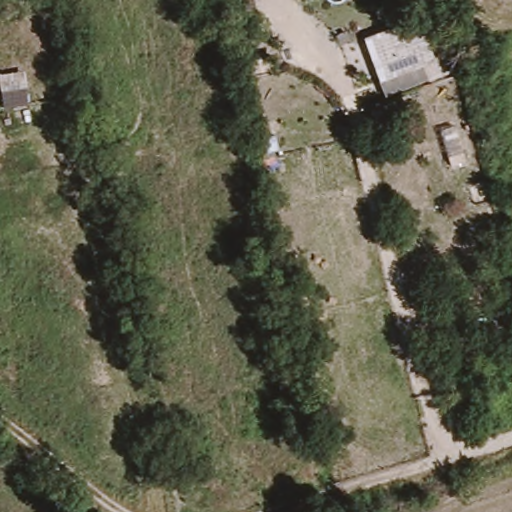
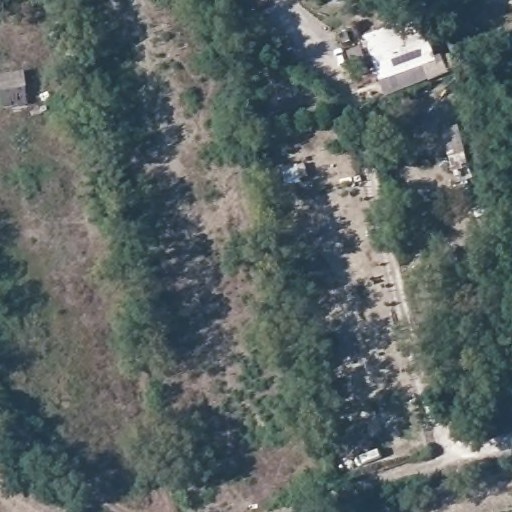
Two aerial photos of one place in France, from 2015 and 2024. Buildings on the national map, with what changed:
unchanged [(32,0),(45,0),(56,19),(35,31),(22,6),(32,0)]
unchanged [(444,76),(389,100),(367,35),(420,15),(444,76)]

